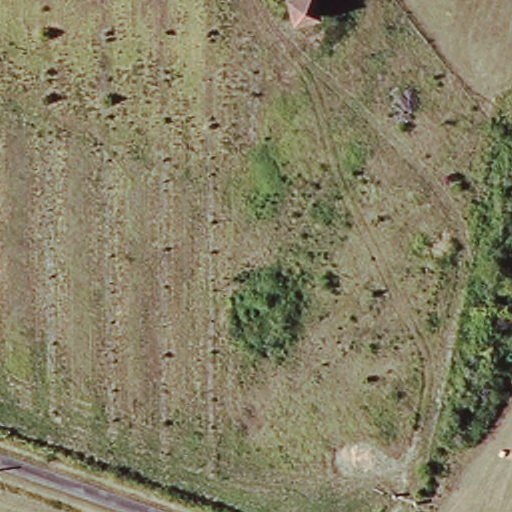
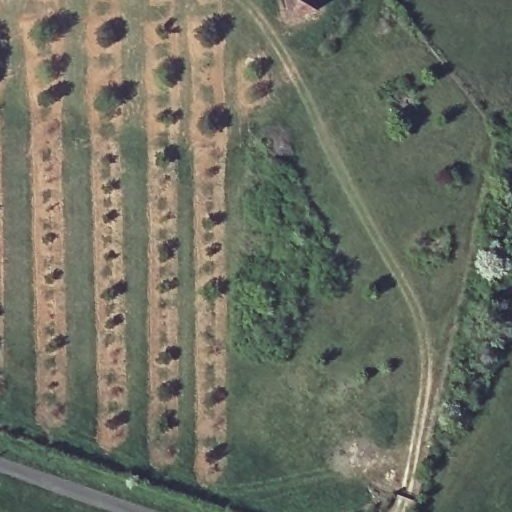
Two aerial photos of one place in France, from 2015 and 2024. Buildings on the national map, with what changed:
unchanged [(321,0),(324,13),(285,24),(279,0),(321,0)]

